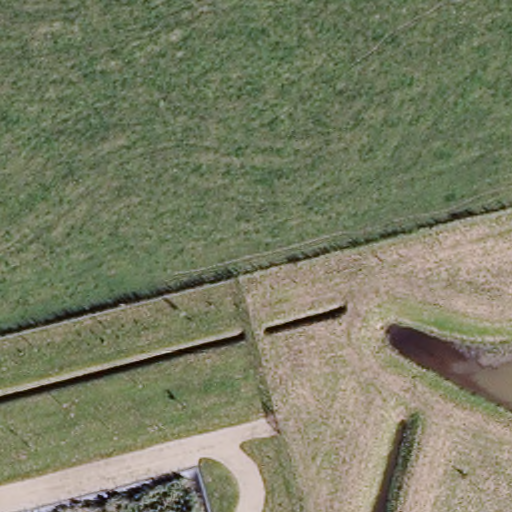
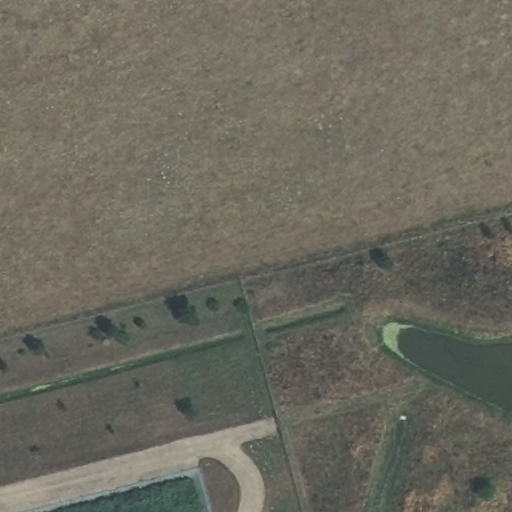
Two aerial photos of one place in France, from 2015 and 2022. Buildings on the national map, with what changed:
[]

